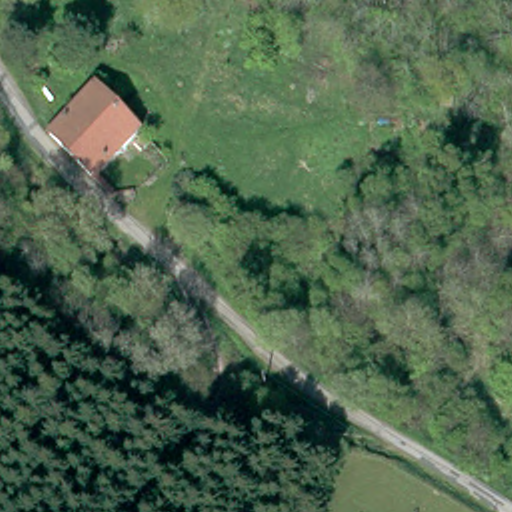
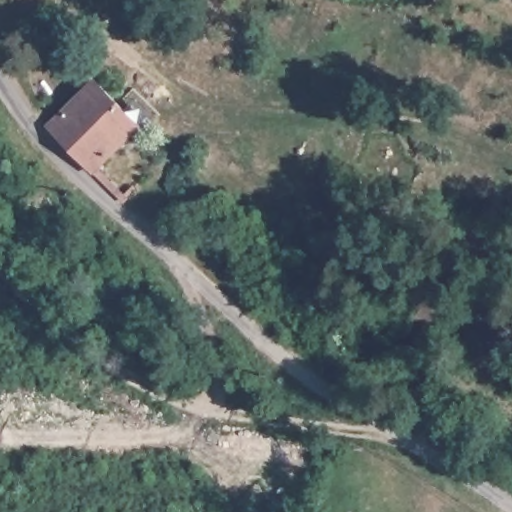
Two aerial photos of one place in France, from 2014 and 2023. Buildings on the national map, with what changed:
unchanged [(90,79),(138,122),(94,170),(46,123),(90,79)]
unchanged [(105,244),(84,225),(93,214),(116,234),(105,244)]

